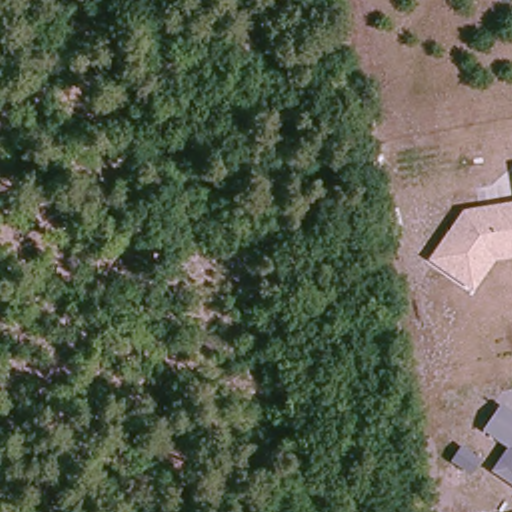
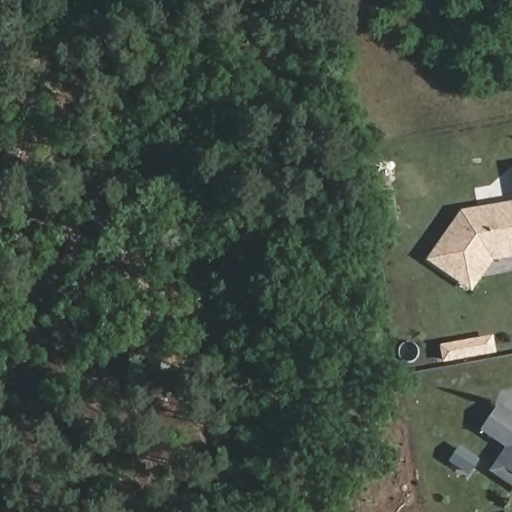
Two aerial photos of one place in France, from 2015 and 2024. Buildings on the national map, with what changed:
unchanged [(482,248),(484,259),(465,286),(430,261),(463,214),(512,205),(512,242),(482,248)]
unchanged [(490,472),(506,449),(481,431),(501,405),(512,412),(512,486),(490,472)]

